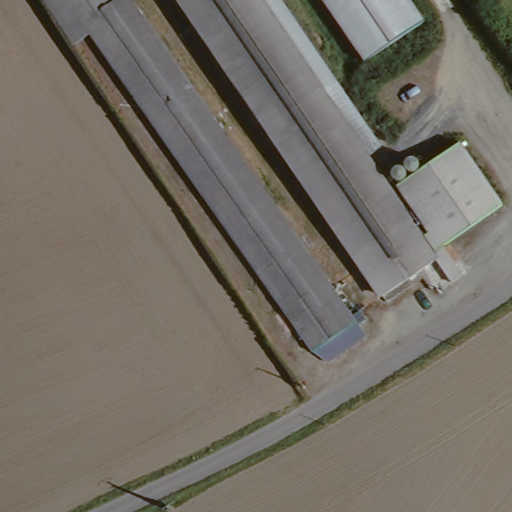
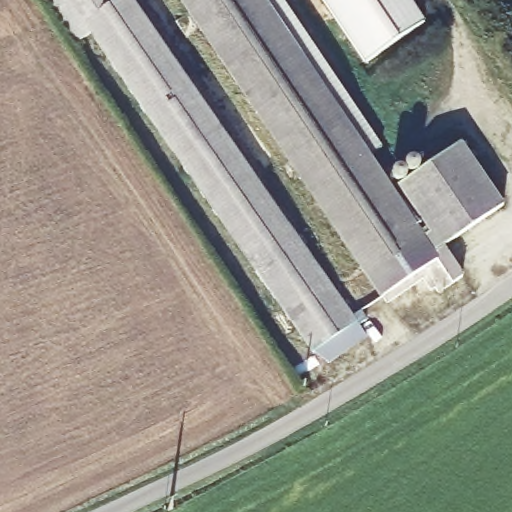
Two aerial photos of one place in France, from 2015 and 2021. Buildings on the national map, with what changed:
unchanged [(45,0),(122,0),(84,27),(92,38),(78,48),(45,0)]
unchanged [(311,354),(92,38),(84,27),(122,0),(128,0),(349,319),(357,314),(363,323),(355,328),(363,339),(340,354),(326,364),(316,351),(311,354)]
unchanged [(429,267),(375,303),(172,0),(249,0),(360,165),(360,164),(421,254),(432,248),(393,193),(455,151),(498,212),(437,254),(455,281),(445,289),(429,267)]
unchanged [(249,0),(271,0),(375,155),(360,164),(360,165),(249,0)]
unchanged [(368,64),(324,0),(409,0),(426,24),(368,64)]

